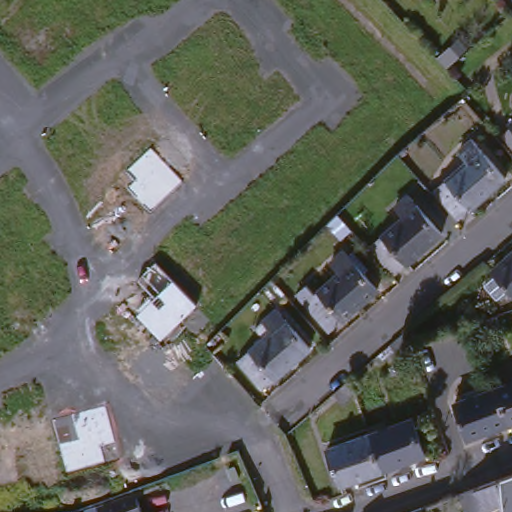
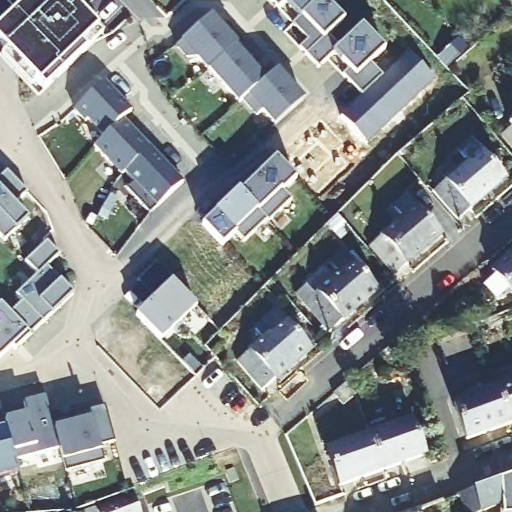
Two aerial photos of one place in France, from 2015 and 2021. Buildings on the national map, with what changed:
new [(18,11),(29,0),(67,0),(98,31),(81,47),(86,51),(44,90),(0,43),(0,1),(1,0),(3,0),(18,11)]
new [(343,20),(329,35),(339,45),(361,27),(384,50),(371,62),(381,76),(361,96),(341,75),(347,68),(333,53),(319,69),(299,47),(305,41),(289,24),(296,15),(283,0),(276,6),(271,0),(323,0),(343,20)]
new [(274,126),(246,95),(236,103),(181,39),(211,12),(247,55),(266,77),(276,69),(304,99),(274,126)]
new [(103,79),(132,110),(123,118),(183,182),(148,214),(126,190),(133,183),(123,171),(119,174),(96,148),(94,146),(102,138),(86,123),(86,124),(73,109),(103,79)]
unchanged [(509,137),(512,134),(512,141),(509,137)]
unchanged [(461,222),(438,195),(472,165),(464,155),(476,145),(509,182),(461,222)]
new [(243,243),(235,233),(223,244),(204,226),(216,214),(241,190),(276,158),(294,180),(283,192),(289,201),(243,243)]
new [(13,202),(26,219),(15,229),(4,241),(0,237),(0,178),(5,173),(26,192),(13,202)]
unchanged [(394,272),(369,245),(403,216),(394,206),(408,195),(440,232),(394,272)]
new [(11,313),(21,302),(14,295),(36,275),(26,263),(46,243),(58,257),(44,269),(61,281),(72,296),(51,314),(16,349),(13,347),(0,357),(0,304),(1,303),(11,313)]
unchanged [(329,330),(304,301),(339,271),(331,261),(344,250),(376,288),(329,330)]
unchanged [(509,289),(495,296),(482,281),(493,271),(491,269),(512,251),(512,292),(509,289)]
unchanged [(160,339),(136,314),(154,297),(138,279),(155,262),(196,305),(160,339)]
unchanged [(263,393),(237,364),(271,335),(263,325),(275,314),(309,353),(263,393)]
unchanged [(408,344),(409,345),(398,354),(389,344),(403,331),(408,344)]
unchanged [(354,393),(342,404),(331,393),(349,378),(354,393)]
unchanged [(512,384),(512,415),(502,387),(512,384)]
unchanged [(512,415),(512,422),(472,436),(459,402),(502,387),(512,415)]
new [(26,411),(23,399),(44,394),(52,419),(55,429),(59,444),(16,456),(11,441),(6,424),(4,417),(26,411)]
new [(114,442),(98,445),(100,453),(103,461),(66,470),(64,462),(55,429),(52,419),(104,405),(114,442)]
unchanged [(411,417),(423,452),(382,467),(369,432),(411,417)]
new [(19,471),(0,478),(0,425),(6,424),(11,441),(19,471)]
unchanged [(382,467),(340,482),(328,447),(369,432),(382,467)]
unchanged [(504,512),(501,480),(512,476),(512,512),(504,512)]
unchanged [(471,497),(498,487),(500,512),(459,512),(456,503),(471,497)]
unchanged [(139,512),(92,512),(133,496),(139,512)]
unchanged [(419,512),(407,512),(419,507),(419,512)]

